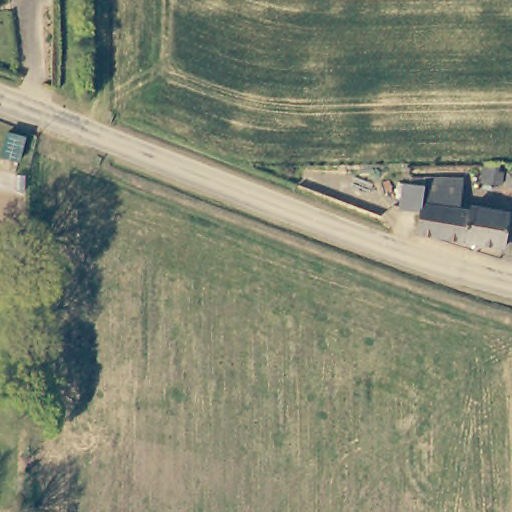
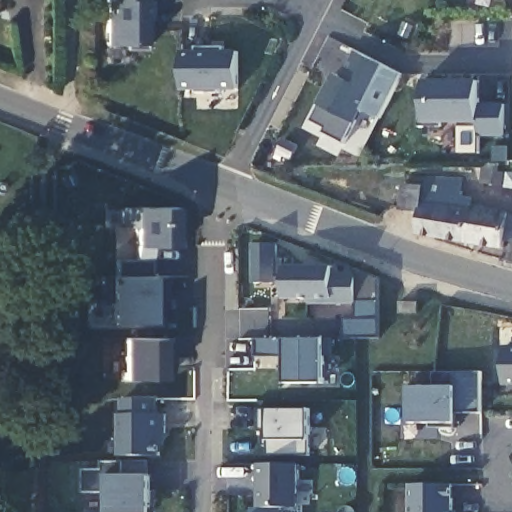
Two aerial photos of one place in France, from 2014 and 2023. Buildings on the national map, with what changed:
new [(147,44),(104,45),(104,0),(147,0),(147,44)]
new [(236,90),(180,91),(179,51),(236,51),(236,90)]
new [(379,119),(362,109),(345,143),(324,132),(326,129),(310,120),(333,74),(342,79),(356,51),(401,74),(379,119)]
new [(478,104),(502,104),(502,136),(477,136),(478,123),(424,123),(423,82),(480,80),(478,104)]
demolished [(501,162),(500,179),(483,177),(484,160),(501,162)]
unchanged [(421,212),(401,210),(406,185),(412,186),(412,179),(464,183),(461,207),(510,214),(507,235),(505,248),(419,235),(421,212)]
new [(110,275),(115,275),(115,260),(135,260),(135,249),(132,246),(133,227),(118,226),(119,205),(177,207),(176,245),(155,245),(155,255),(149,255),(150,276),(164,276),(164,306),(170,307),(169,322),(110,322),(110,275)]
new [(252,244),(275,244),(275,257),(293,257),(293,266),(331,266),(331,267),(328,267),(328,273),(354,273),(354,267),(378,277),(378,338),(341,338),(340,318),(354,318),(354,300),(331,300),(331,302),(308,302),(308,298),(283,298),(283,276),(275,276),(275,282),(252,283),(252,244)]
new [(253,338),(331,338),(331,355),(323,355),(323,383),(283,383),(283,356),(253,356),(253,338)]
new [(512,387),(503,386),(504,346),(512,346),(512,387)]
new [(435,387),(434,371),(482,372),(482,412),(457,415),(457,423),(455,429),(430,429),(430,423),(408,423),(409,387),(435,387)]
new [(157,399),(157,415),(165,414),(165,433),(159,433),(160,455),(120,456),(118,415),(121,415),(121,400),(157,399)]
new [(309,456),(269,456),(268,445),(264,446),(264,431),(257,431),(258,408),(310,409),(309,456)]
new [(84,492),(84,469),(103,470),(103,461),(124,463),(123,475),(150,475),(150,512),(108,512),(108,493),(84,492)]
new [(297,507),(256,507),(257,463),(298,464),(297,507)]
new [(453,510),(458,510),(458,512),(409,512),(408,482),(454,485),(453,510)]

